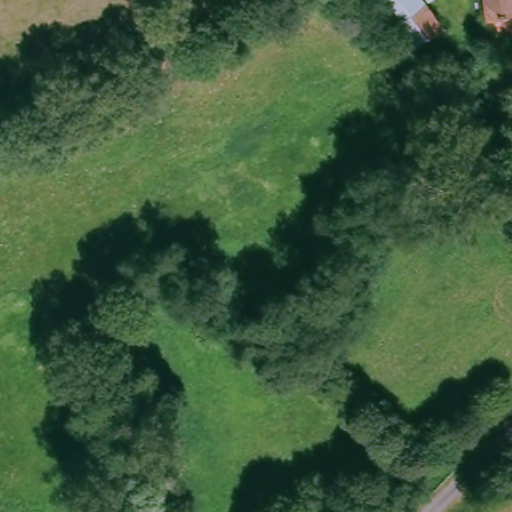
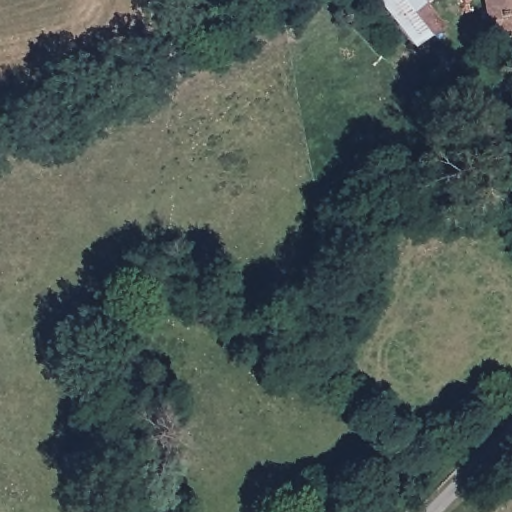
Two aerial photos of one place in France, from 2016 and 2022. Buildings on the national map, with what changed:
unchanged [(423,2),(440,26),(415,42),(381,0),(426,0),(423,2)]
unchanged [(503,27),(498,25),(495,18),(490,18),(486,0),(512,0),(512,29),(511,26),(503,27)]

